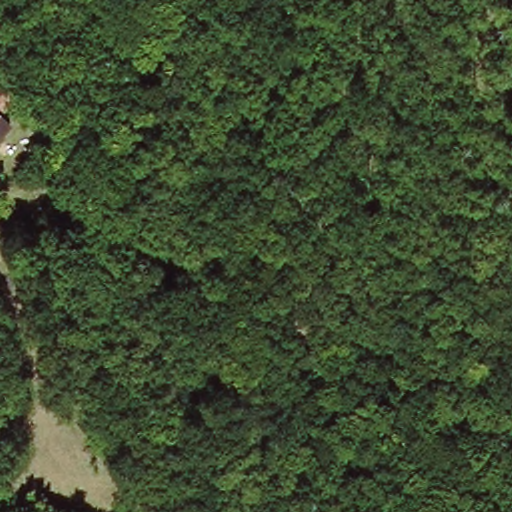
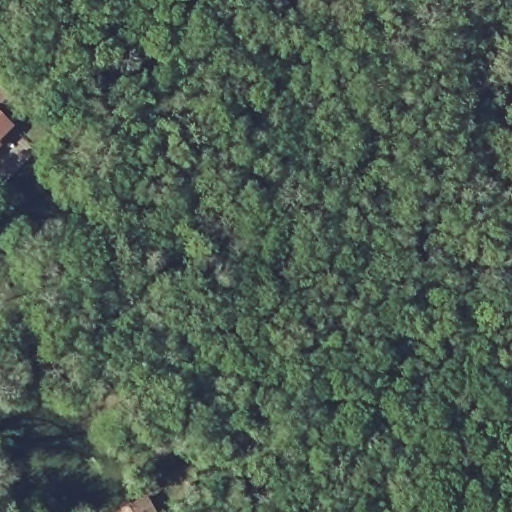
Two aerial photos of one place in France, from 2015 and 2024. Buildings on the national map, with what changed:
unchanged [(0,115),(13,127),(0,138),(0,86),(14,102),(0,115)]
new [(147,494),(156,512),(115,512),(147,494)]

